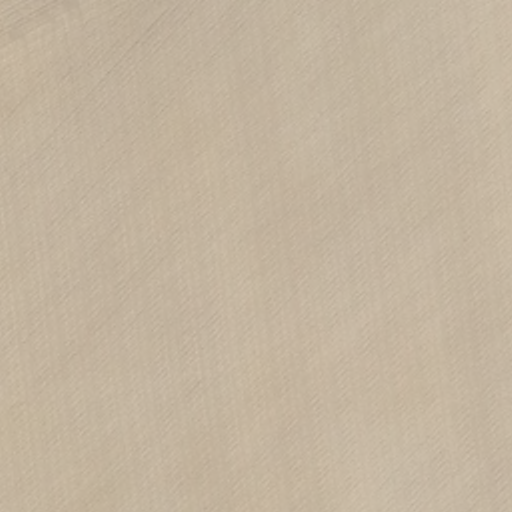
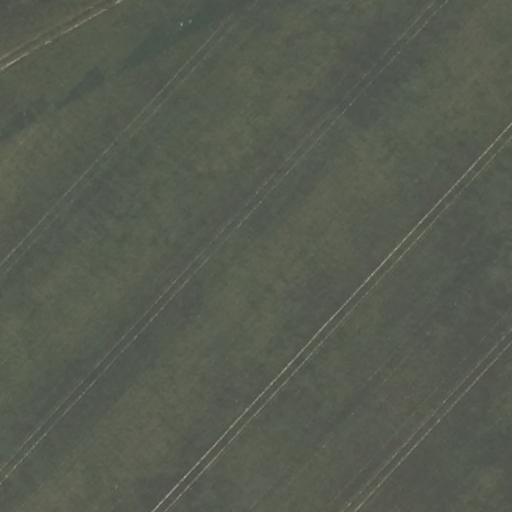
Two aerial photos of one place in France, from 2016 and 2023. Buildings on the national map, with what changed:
[]

